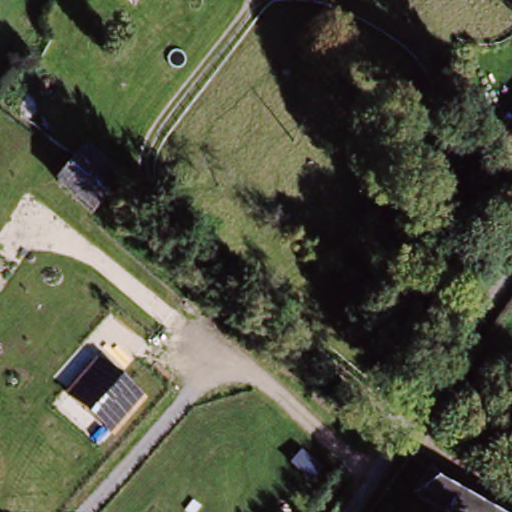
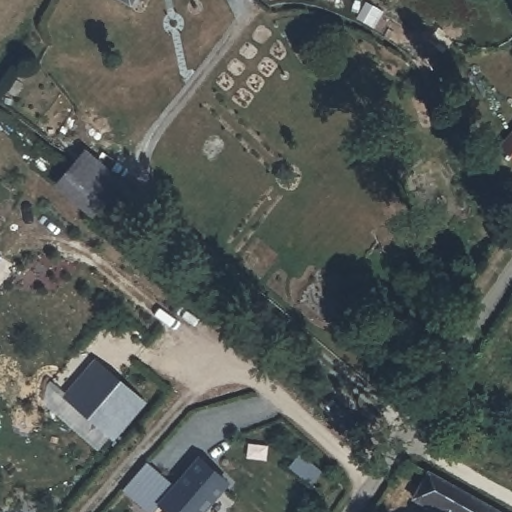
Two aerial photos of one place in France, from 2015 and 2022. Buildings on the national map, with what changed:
unchanged [(123,7),(113,0),(128,0),(123,7)]
unchanged [(73,168),(108,196),(91,216),(57,188),(73,168)]
unchanged [(97,358),(145,401),(113,438),(65,395),(97,358)]
new [(203,512),(177,512),(165,500),(154,512),(151,512),(137,500),(123,488),(147,461),(175,485),(200,458),(228,483),(203,512)]
unchanged [(420,473),(492,512),(423,512),(402,501),(420,473)]

